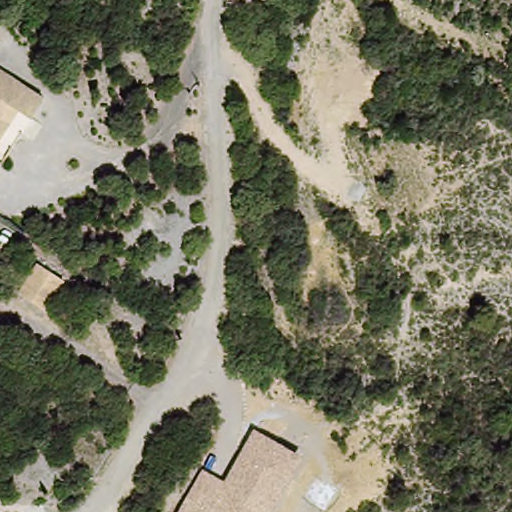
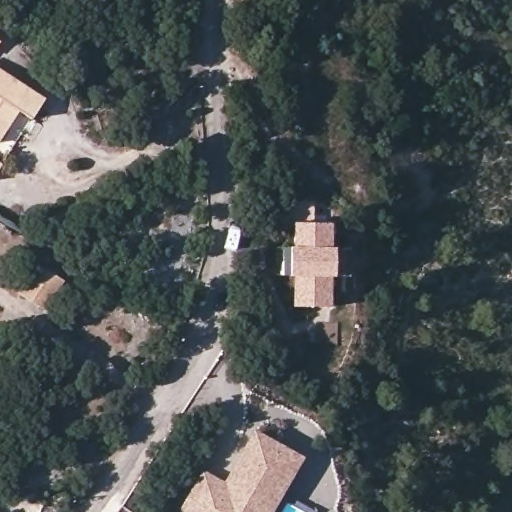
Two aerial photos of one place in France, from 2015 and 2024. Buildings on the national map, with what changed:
new [(5,45),(0,53),(0,42),(5,45)]
unchanged [(1,149),(0,148),(0,72),(45,102),(34,120),(24,114),(14,129),(1,149)]
new [(330,224),(330,246),(335,246),(335,276),(328,276),(331,308),(293,307),(295,277),(290,276),(291,246),(296,246),(295,224),(330,224)]
unchanged [(35,262),(69,282),(50,316),(15,296),(35,262)]
unchanged [(224,480),(253,428),(304,456),(273,512),(179,512),(202,468),(224,480)]

